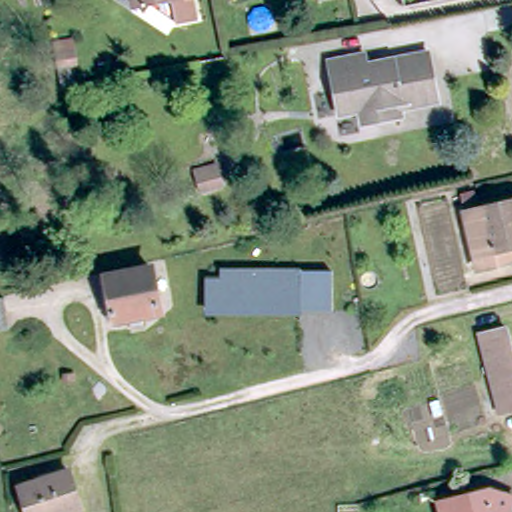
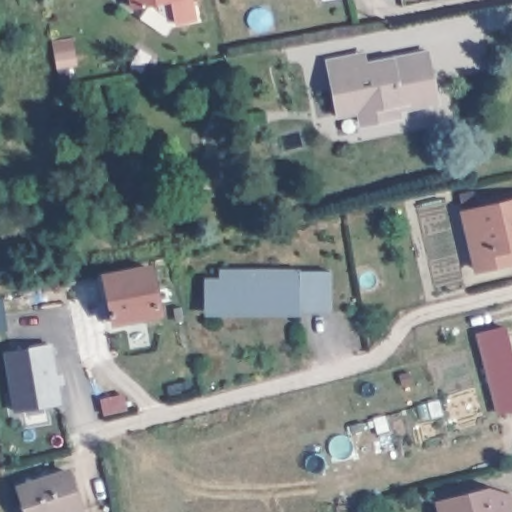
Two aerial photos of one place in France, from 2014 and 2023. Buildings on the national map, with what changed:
unchanged [(170,22),(161,20),(157,3),(152,5),(127,9),(125,0),(186,0),(190,18),(170,22)]
unchanged [(360,119),(359,110),(338,113),(330,72),(327,57),(364,51),(366,68),(376,66),(375,58),(427,49),(435,95),(437,101),(400,108),(400,116),(392,114),(360,119)]
unchanged [(219,183),(202,187),(197,168),(216,164),(219,183)]
unchanged [(512,246),(512,248),(512,260),(479,268),(465,211),(512,200),(512,246)]
unchanged [(108,291),(105,274),(152,266),(160,310),(113,319),(112,312),(107,313),(102,292),(108,291)]
unchanged [(333,311),(300,311),(301,315),(205,316),(205,277),(220,277),(220,267),(300,267),(300,271),(332,271),(333,311)]
unchanged [(7,328),(0,329),(0,298),(3,297),(7,328)]
unchanged [(504,327),(512,356),(512,411),(500,414),(477,334),(495,329),(504,327)]
new [(63,373),(65,384),(60,385),(63,404),(13,411),(5,350),(55,342),(59,373),(63,373)]
unchanged [(82,507),(68,512),(28,512),(20,485),(70,469),(82,507)]
unchanged [(440,501),(488,488),(512,496),(512,512),(443,512),(440,501)]

